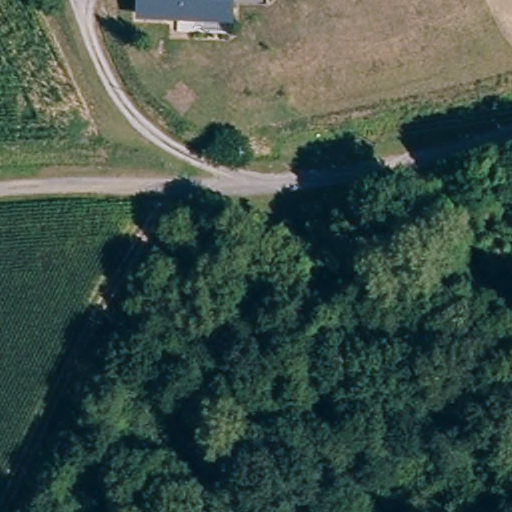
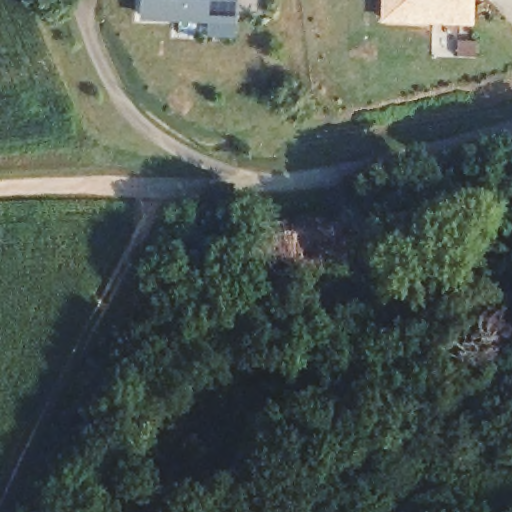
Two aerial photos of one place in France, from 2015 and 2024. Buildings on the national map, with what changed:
unchanged [(211,23),(180,21),(141,17),(142,0),(230,0),(229,6),(228,25),(211,23)]
new [(471,26),(379,22),(380,0),(472,0),(471,26)]

